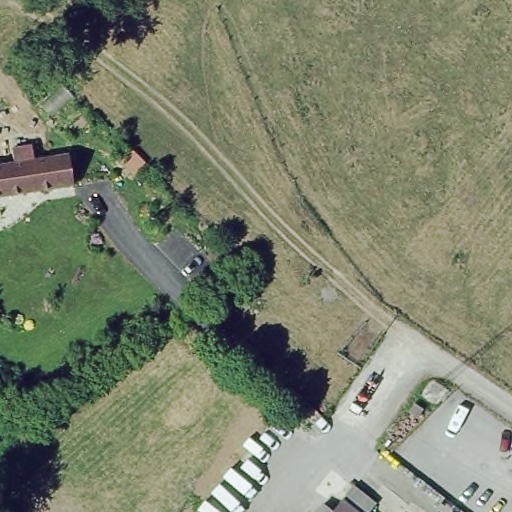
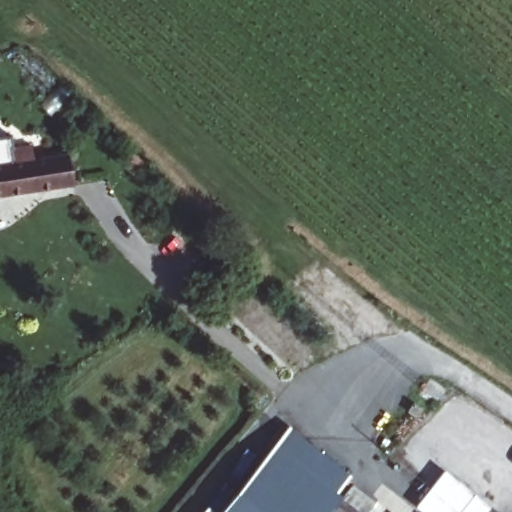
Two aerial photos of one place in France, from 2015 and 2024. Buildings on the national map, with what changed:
unchanged [(0,193),(0,166),(13,165),(12,151),(31,149),(33,160),(68,155),(71,181),(0,193)]
new [(338,492),(343,496),(353,485),(377,503),(368,512),(221,512),(291,428),(351,476),(338,492)]
new [(415,508),(443,471),(489,507),(486,512),(420,512),(415,508)]
demolished [(325,502),(334,508),(341,498),(362,512),(318,512),(325,502)]
new [(206,507),(213,512),(202,512),(206,507)]

